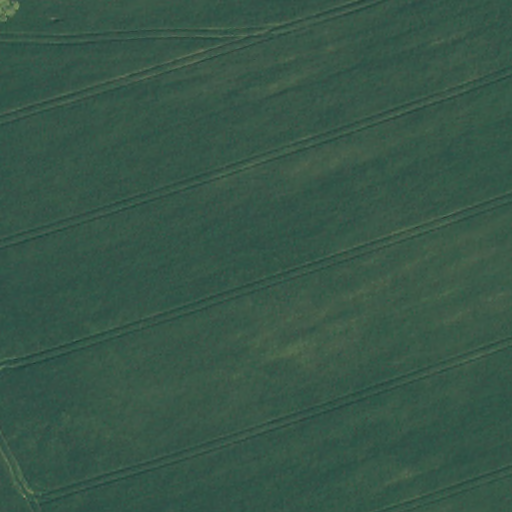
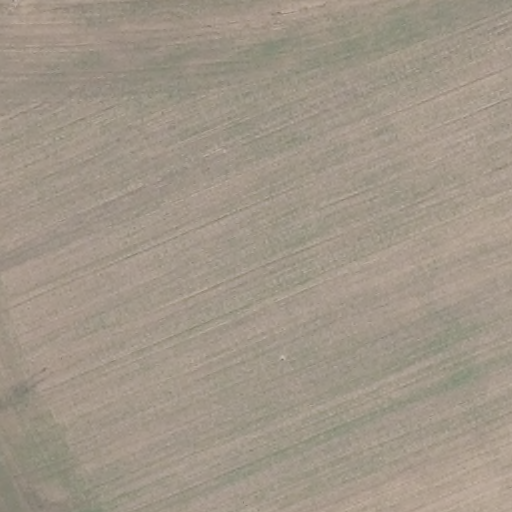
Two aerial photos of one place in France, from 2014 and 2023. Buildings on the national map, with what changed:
[]

